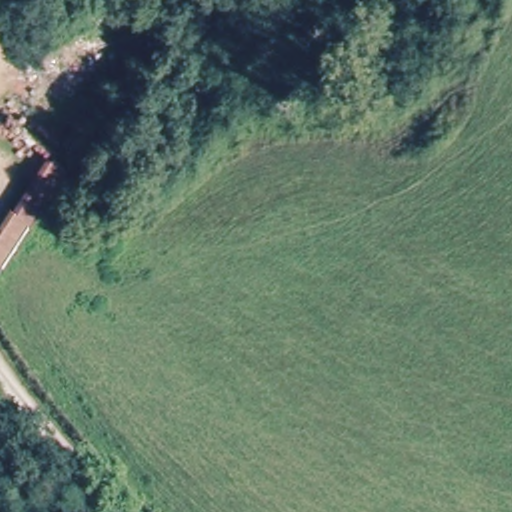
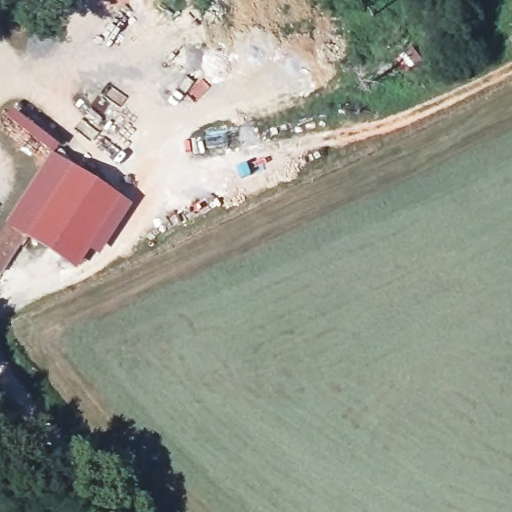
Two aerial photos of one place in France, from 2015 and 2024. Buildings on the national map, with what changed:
unchanged [(72,168),(4,271),(0,268),(0,239),(54,154),(72,168)]
new [(26,237),(72,168),(131,205),(100,256),(90,249),(76,269),(26,237)]
demolished [(64,230),(90,251),(76,267),(54,245),(64,230)]

